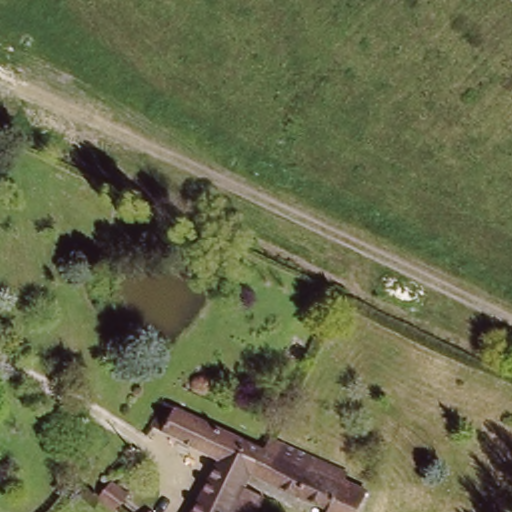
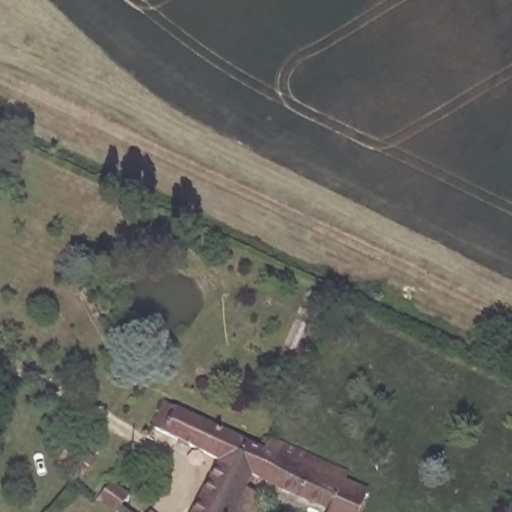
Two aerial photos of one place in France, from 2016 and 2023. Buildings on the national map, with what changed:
unchanged [(218,459),(152,428),(164,405),(262,449),(249,474),(243,486),(264,496),(257,512),(191,512),(218,459)]
unchanged [(74,442),(97,458),(84,475),(63,459),(61,459),(74,442)]
unchanged [(262,449),(276,454),(281,444),(346,473),(344,477),(370,489),(358,512),(326,512),(328,509),(249,474),(262,449)]
unchanged [(130,492),(115,511),(99,499),(114,481),(130,492)]
unchanged [(146,509),(150,512),(144,512),(146,509)]

